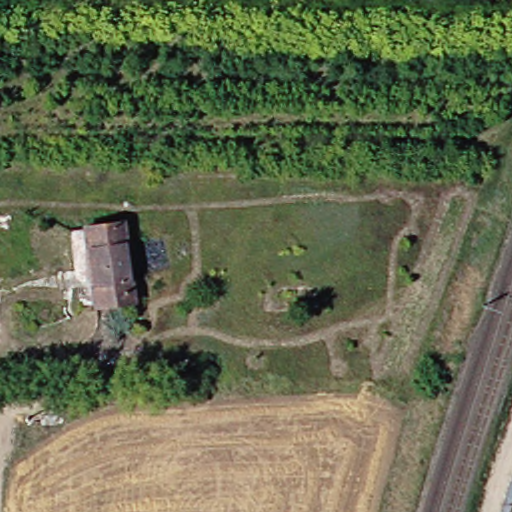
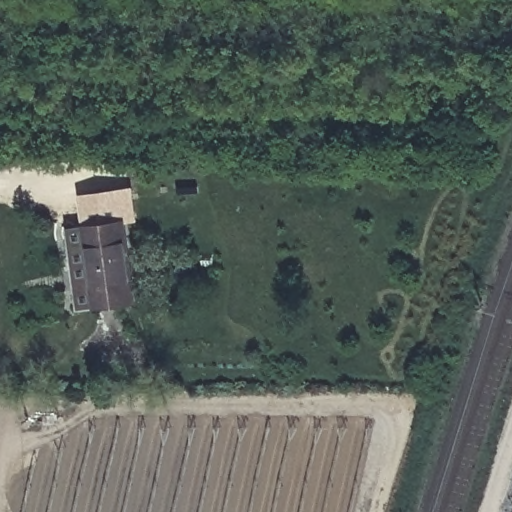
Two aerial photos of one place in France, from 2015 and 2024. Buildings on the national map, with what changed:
new [(134,188),(138,222),(126,223),(82,227),(79,194),(134,188)]
unchanged [(126,223),(134,301),(79,306),(70,228),(126,223)]

